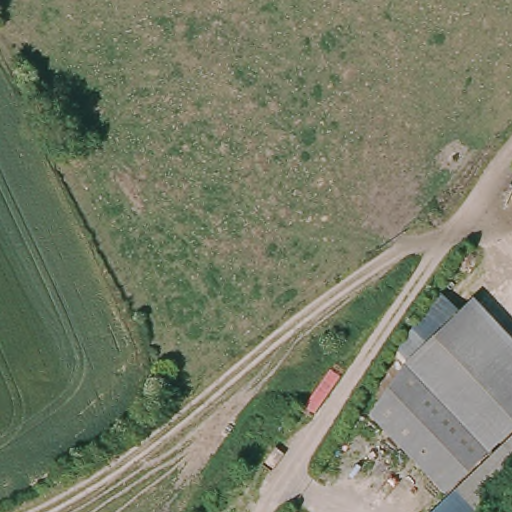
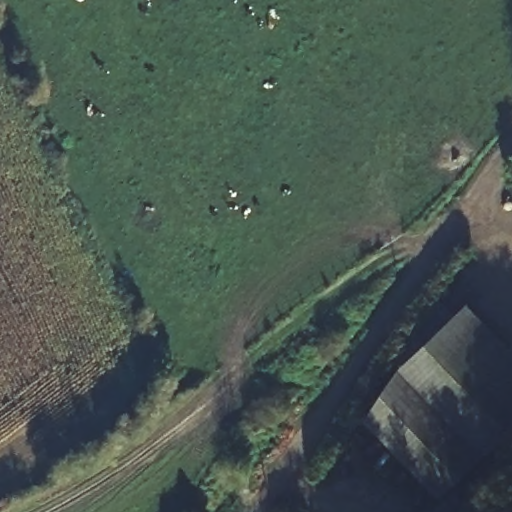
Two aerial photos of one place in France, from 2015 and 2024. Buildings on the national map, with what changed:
unchanged [(512,193),(508,189),(512,184),(512,193)]
unchanged [(512,484),(484,512),(430,512),(445,497),(368,418),(402,366),(469,302),(512,345),(512,484)]

